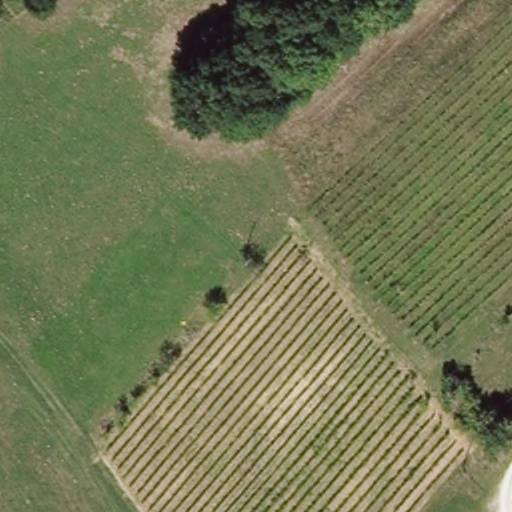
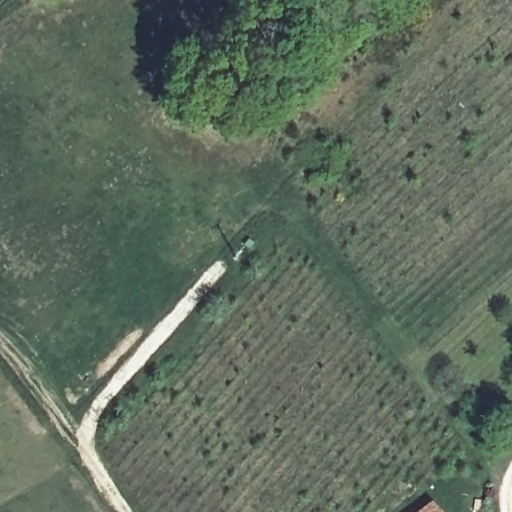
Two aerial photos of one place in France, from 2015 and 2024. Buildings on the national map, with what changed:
new [(431,501),(440,512),(418,512),(431,501)]

